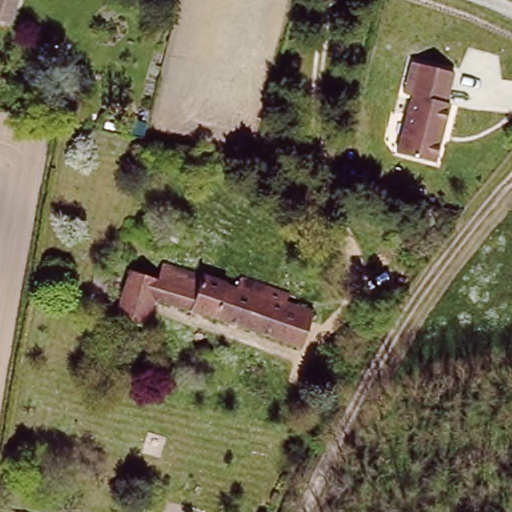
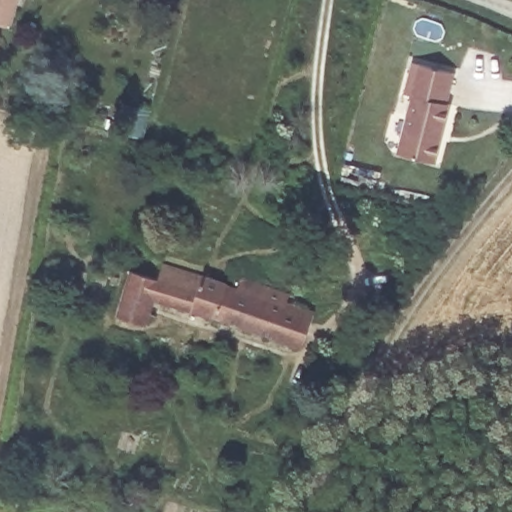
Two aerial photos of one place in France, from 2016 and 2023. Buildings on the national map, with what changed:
unchanged [(0,18),(0,0),(15,0),(9,21),(0,18)]
unchanged [(454,71),(445,100),(450,105),(432,160),(393,147),(410,96),(401,90),(411,58),(454,71)]
unchanged [(301,347),(154,303),(146,328),(115,318),(129,274),(157,283),(160,269),(225,289),(223,294),(235,298),(239,285),(286,300),(284,308),(310,316),(301,347)]

